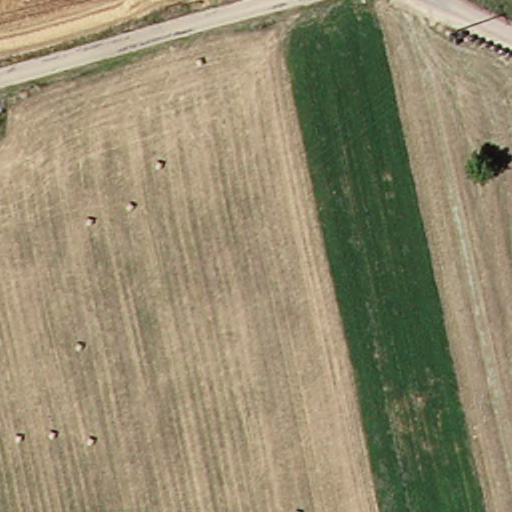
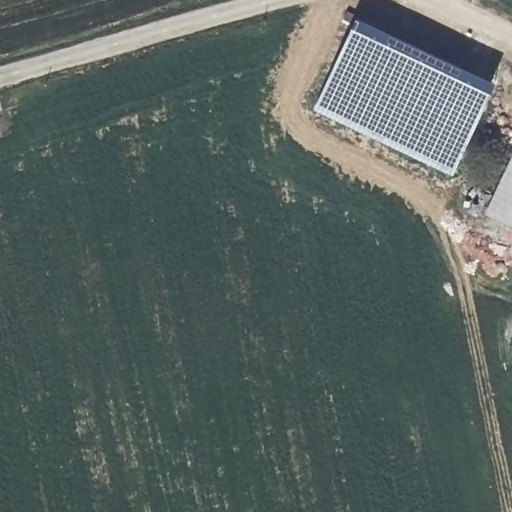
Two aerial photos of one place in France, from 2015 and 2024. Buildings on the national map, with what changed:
new [(360,17),(497,82),(453,174),(316,108),(360,17)]
new [(512,158),(512,225),(486,213),(512,158)]

